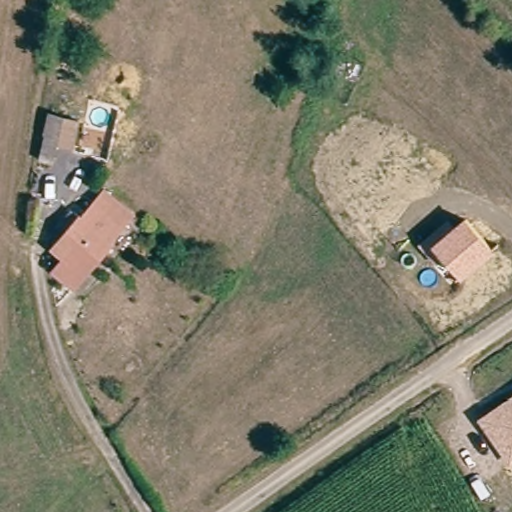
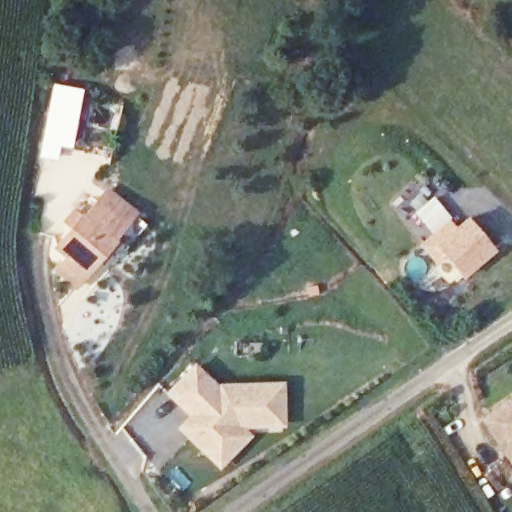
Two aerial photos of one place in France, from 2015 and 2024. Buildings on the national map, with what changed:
unchanged [(74,146),(60,144),(54,161),(38,157),(50,110),(81,116),(74,146)]
unchanged [(66,266),(76,249),(65,242),(76,224),(63,214),(68,204),(76,209),(80,203),(86,208),(95,194),(103,182),(134,205),(125,219),(85,279),(66,266)]
unchanged [(495,251),(462,279),(441,256),(434,264),(418,243),(449,219),(456,223),(465,216),(495,251)]
new [(220,470),(211,461),(178,431),(190,418),(179,407),(167,396),(194,367),(218,389),(219,387),(283,385),(284,427),(241,428),(251,438),(220,470)]
unchanged [(478,418),(512,396),(512,462),(508,465),(478,418)]

